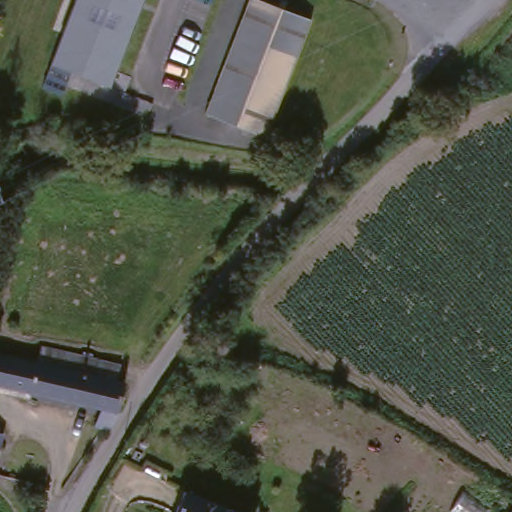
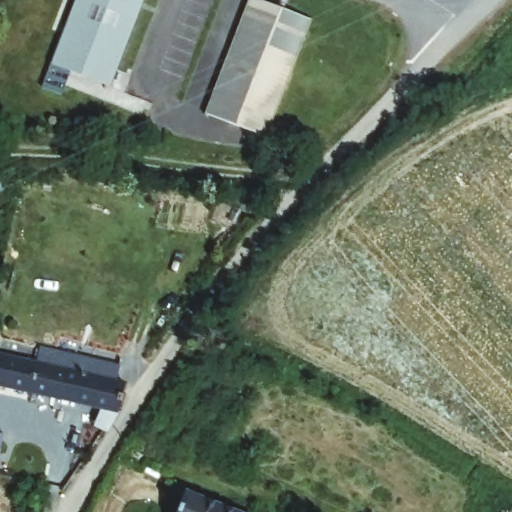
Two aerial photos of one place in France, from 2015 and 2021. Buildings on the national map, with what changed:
unchanged [(49,60),(73,0),(145,0),(110,84),(70,69),(60,94),(38,85),(49,60)]
unchanged [(264,134),(203,109),(248,0),(272,0),(312,17),(264,134)]
unchanged [(95,428),(103,407),(0,383),(0,352),(39,362),(42,348),(123,365),(119,380),(126,382),(110,432),(108,432),(95,428)]
unchanged [(0,453),(0,433),(4,434),(0,453)]
unchanged [(242,512),(174,512),(183,488),(242,512)]

